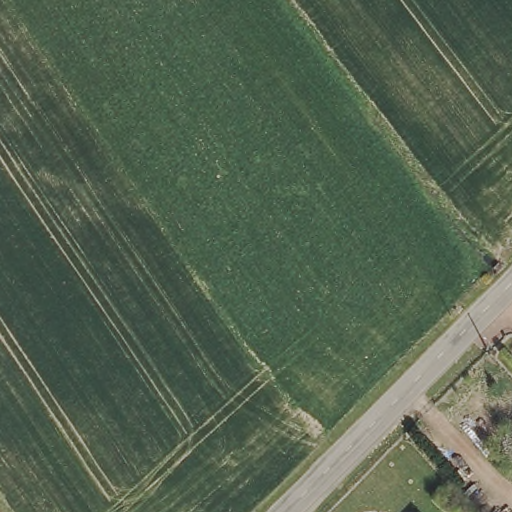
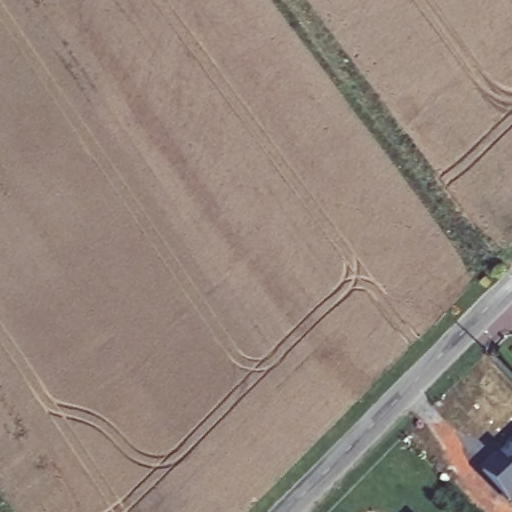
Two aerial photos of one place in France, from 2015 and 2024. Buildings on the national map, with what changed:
new [(512,440),(512,503),(510,505),(479,471),(512,440)]

